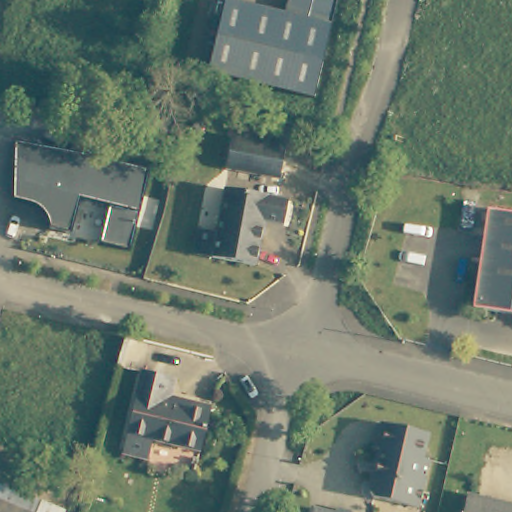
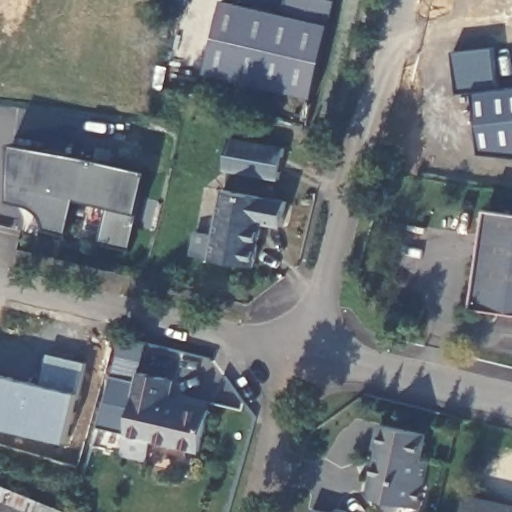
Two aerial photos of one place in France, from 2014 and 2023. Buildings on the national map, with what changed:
unchanged [(289,0),(336,0),(329,24),(313,98),(208,74),(225,0),(233,0),(284,13),(289,0)]
new [(500,47),(504,87),(512,86),(512,158),(486,155),(479,93),(465,94),(460,51),(500,47)]
unchanged [(280,177),(227,166),(232,135),(286,145),(280,177)]
unchanged [(147,172),(137,214),(128,249),(100,243),(111,207),(80,199),(71,234),(50,229),(49,220),(41,210),(24,201),(13,200),(17,145),(147,172)]
unchanged [(193,227),(212,230),(221,186),(283,198),(279,223),(258,220),(251,262),(207,254),(189,251),(193,227)]
unchanged [(472,308),(486,207),(512,211),(512,313),(472,308)]
new [(50,352),(86,360),(67,442),(0,425),(0,372),(42,382),(50,352)]
unchanged [(172,375),(168,395),(180,398),(207,405),(197,446),(196,446),(149,435),(144,454),(120,448),(140,367),(165,374),(172,375)]
unchanged [(416,460),(425,462),(414,509),(369,498),(366,493),(376,451),(372,450),(377,424),(421,435),(416,460)]
unchanged [(0,492),(4,483),(45,500),(41,512),(0,512),(0,492)]
unchanged [(469,491),(512,500),(512,512),(464,512),(469,493),(469,491)]
unchanged [(313,504),(333,509),(339,504),(350,508),(353,511),(353,512),(312,512),(313,504)]

